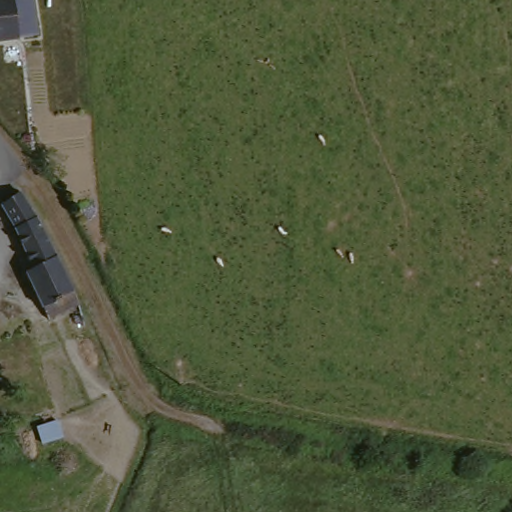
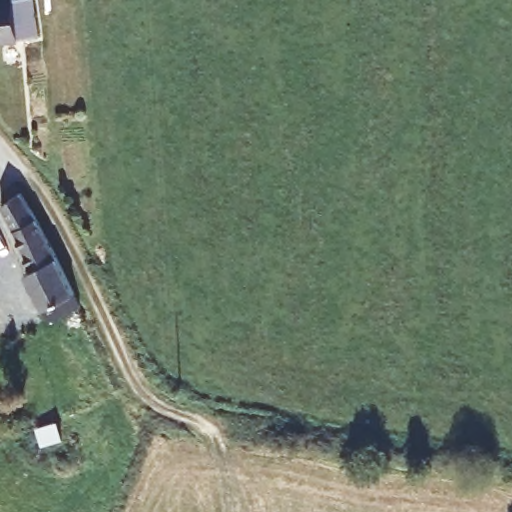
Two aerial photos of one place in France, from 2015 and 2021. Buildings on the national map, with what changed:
unchanged [(8,39),(0,41),(0,0),(23,0),(28,36),(8,39)]
unchanged [(56,315),(49,305),(31,270),(36,267),(19,227),(6,202),(27,190),(87,299),(56,315)]

